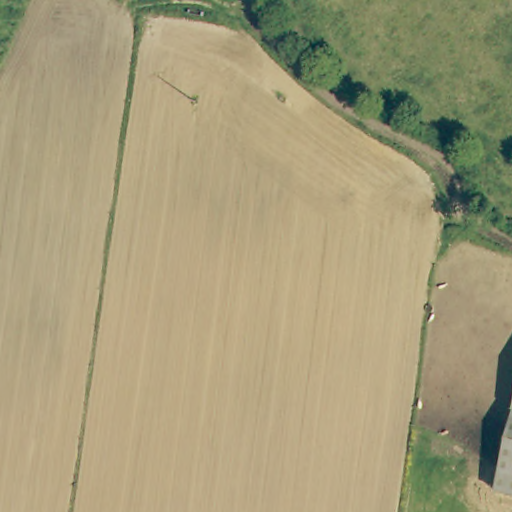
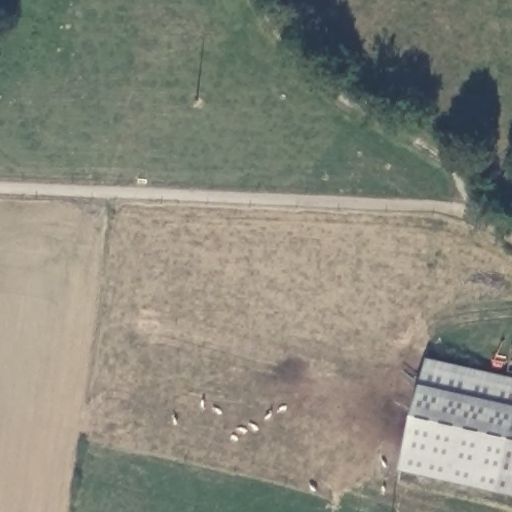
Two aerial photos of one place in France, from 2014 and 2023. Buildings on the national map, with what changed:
new [(399,470),(417,386),(423,359),(512,378),(512,430),(497,492),(399,470)]
unchanged [(512,430),(512,496),(497,492),(512,430)]

